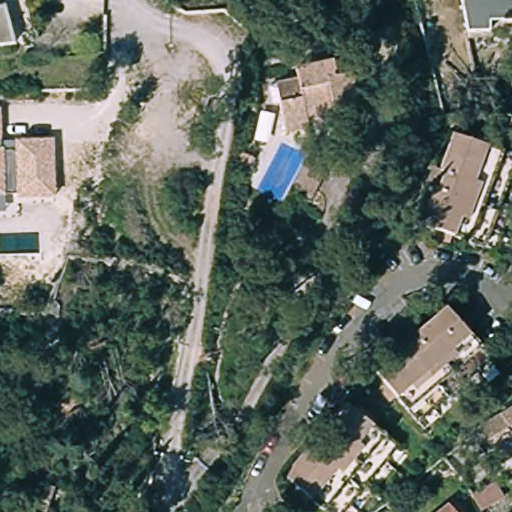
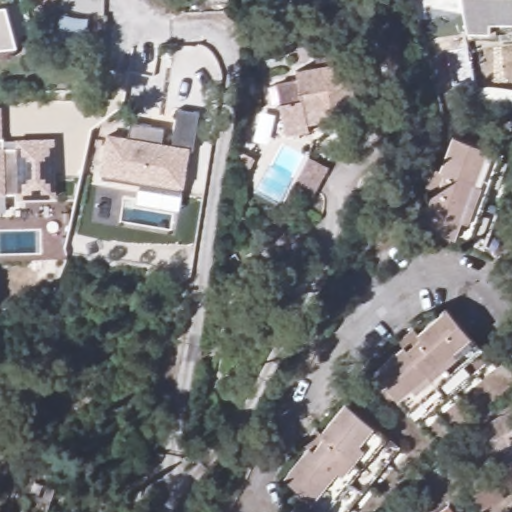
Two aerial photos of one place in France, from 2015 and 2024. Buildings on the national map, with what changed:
demolished [(192,0),(198,0),(193,1),(192,0)]
demolished [(199,0),(212,0),(201,5),(199,0)]
unchanged [(489,33),(466,32),(462,0),(512,0),(512,23),(489,23),(489,33)]
unchanged [(5,11),(17,49),(0,50),(0,11),(5,11)]
unchanged [(303,124),(304,131),(282,135),(272,84),(293,79),(292,70),(330,61),(334,77),(364,71),(371,106),(330,114),(331,119),(303,124)]
demolished [(193,86),(195,114),(170,115),(168,86),(193,86)]
unchanged [(52,139),(57,197),(17,201),(17,194),(3,195),(5,213),(0,213),(0,109),(1,109),(0,138),(52,139)]
new [(181,197),(139,191),(140,186),(99,179),(107,136),(127,140),(130,123),(163,128),(160,143),(171,145),(176,109),(197,111),(181,197)]
unchanged [(474,248),(410,224),(424,188),(429,190),(436,174),(431,172),(445,134),(507,158),(474,248)]
unchanged [(410,419),(366,364),(397,338),(401,342),(411,333),(408,329),(439,303),(485,358),(410,419)]
unchanged [(313,433),(308,430),(333,398),(390,442),(336,512),(325,512),(274,473),(298,442),(303,446),(313,433)]
unchanged [(487,431),(512,416),(512,463),(507,466),(487,431)]
unchanged [(45,512),(20,512),(22,499),(47,505),(45,512)]
unchanged [(443,503),(451,512),(431,512),(443,503)]

